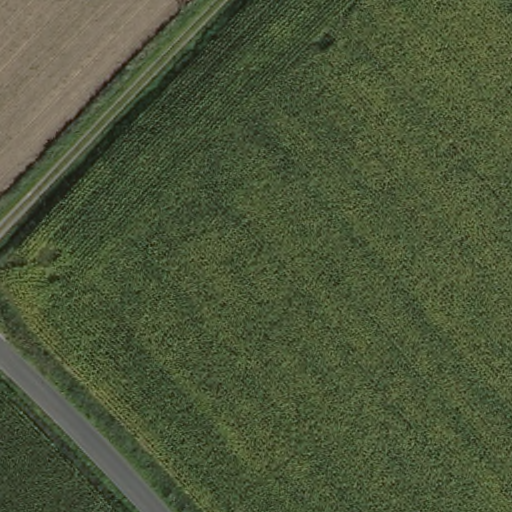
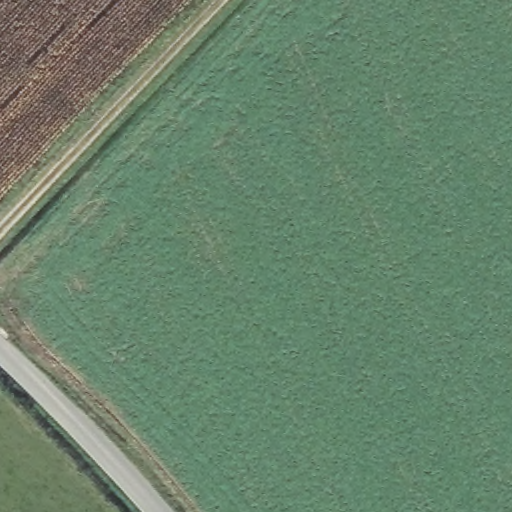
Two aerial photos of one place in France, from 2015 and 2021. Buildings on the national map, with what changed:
[]

